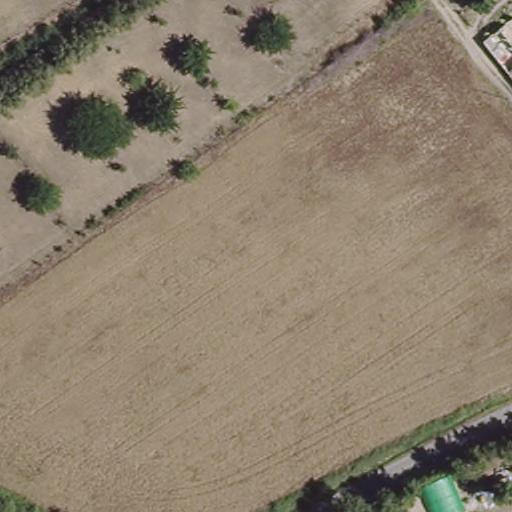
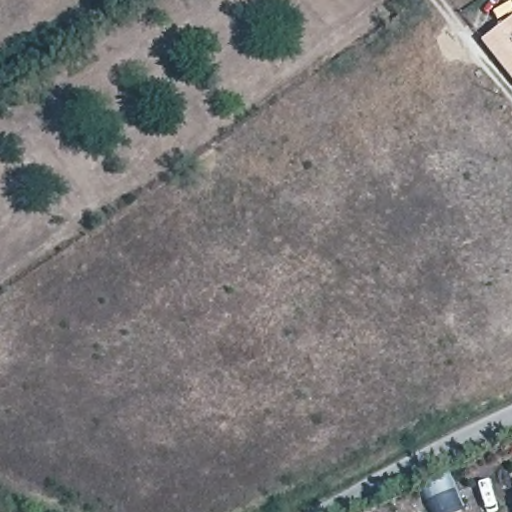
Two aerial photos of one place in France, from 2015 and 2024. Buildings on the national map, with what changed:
new [(512,20),(512,78),(482,42),(512,20)]

